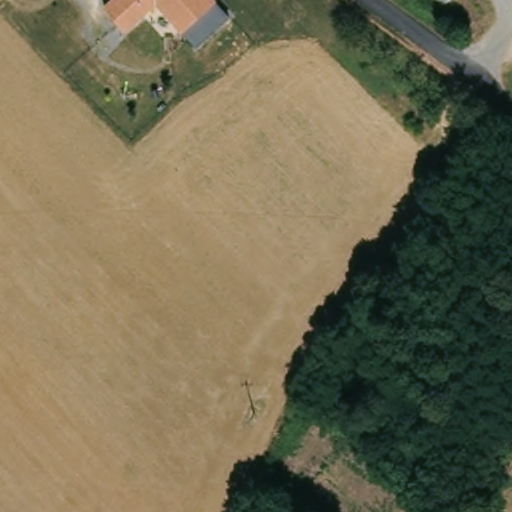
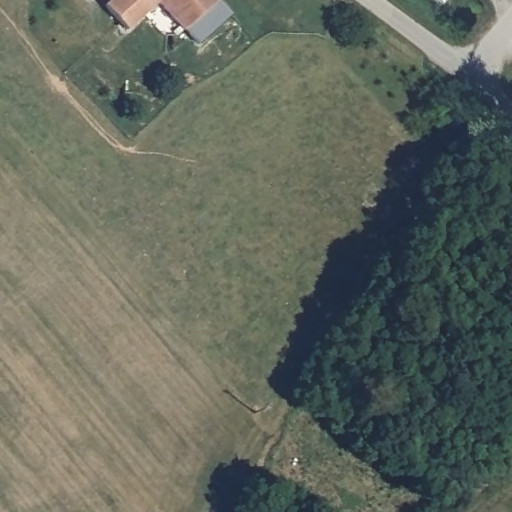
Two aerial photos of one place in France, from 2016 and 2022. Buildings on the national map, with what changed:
unchanged [(159,1),(128,28),(106,3),(109,0),(213,0),(182,27),(159,1)]

